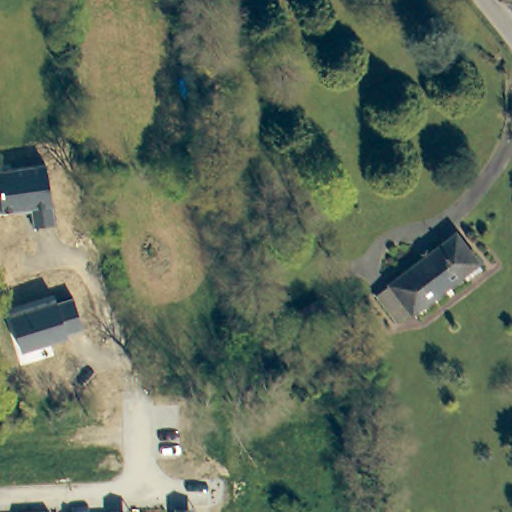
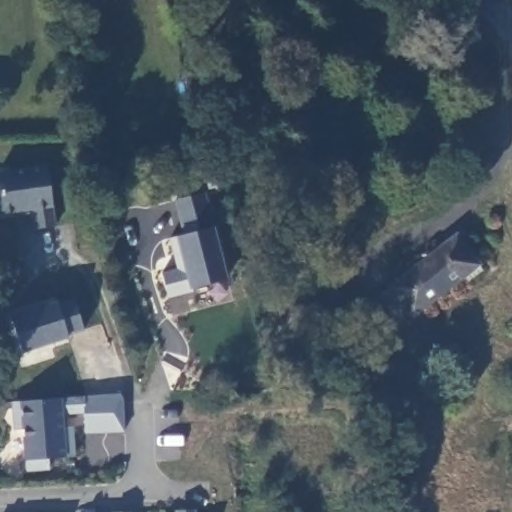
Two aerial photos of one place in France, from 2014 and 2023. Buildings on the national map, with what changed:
unchanged [(32,212),(0,216),(0,194),(1,194),(0,187),(0,172),(46,165),(56,229),(34,229),(32,212)]
new [(181,269),(173,238),(188,234),(179,199),(207,192),(229,279),(196,289),(197,291),(172,298),(165,273),(181,269)]
unchanged [(411,310),(397,320),(377,294),(455,234),(481,267),(466,279),(462,274),(413,313),(411,310)]
unchanged [(85,332),(23,354),(9,315),(57,300),(58,303),(74,298),(85,332)]
unchanged [(289,312),(317,298),(324,312),(297,325),(289,312)]
new [(61,398),(122,394),(125,432),(85,434),(84,414),(64,415),(65,427),(73,427),(75,458),(67,458),(49,459),(50,471),(25,473),(26,461),(23,461),(20,423),(12,423),(11,401),(20,401),(61,398)]
unchanged [(175,510),(179,510),(194,509),(194,512),(175,512),(175,510)]

